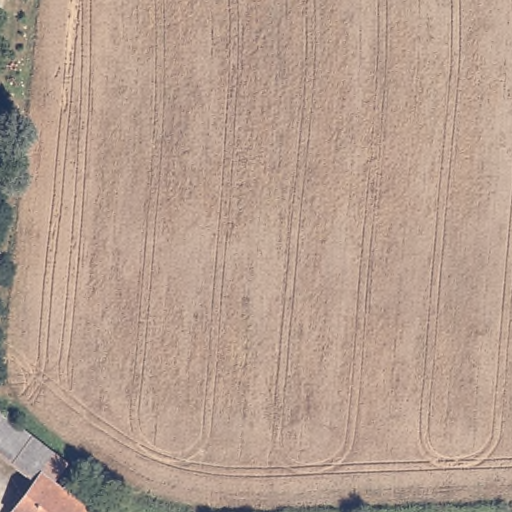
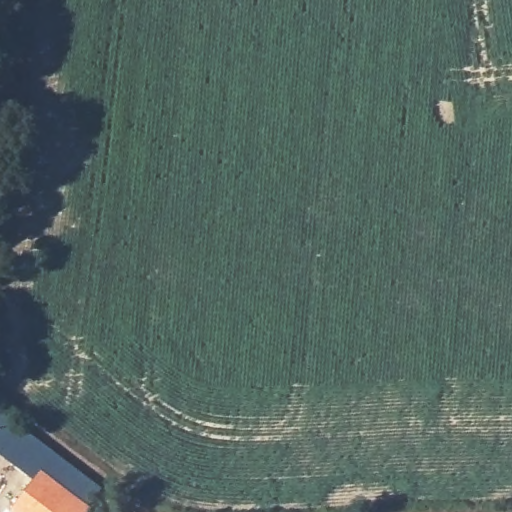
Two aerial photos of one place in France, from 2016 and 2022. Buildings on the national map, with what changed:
unchanged [(59,478),(71,489),(83,470),(106,488),(88,512),(13,512),(36,475),(0,451),(0,407),(73,461),(59,478)]

